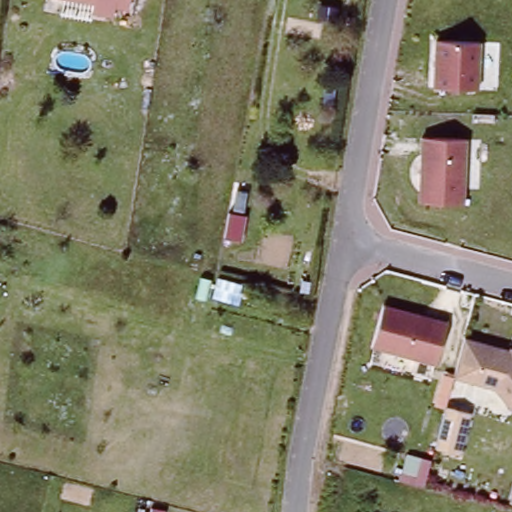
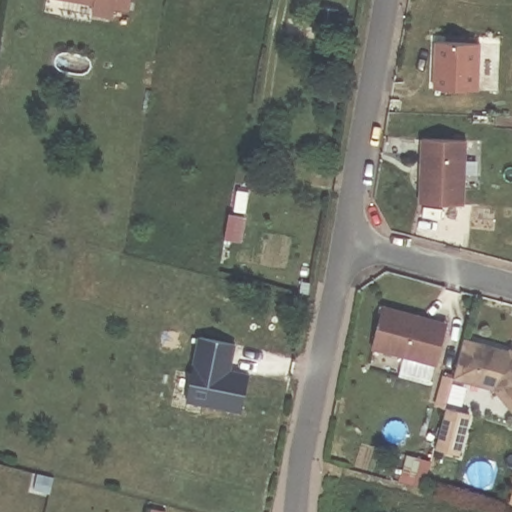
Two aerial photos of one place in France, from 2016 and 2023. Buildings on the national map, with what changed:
unchanged [(115,6),(113,16),(92,11),(94,2),(82,0),(131,0),(129,8),(115,6)]
unchanged [(438,43),(483,45),(481,91),(437,90),(438,43)]
unchanged [(420,204),(422,139),(451,141),(465,141),(463,206),(420,204)]
unchanged [(233,216),(250,219),(245,246),(228,243),(233,216)]
unchanged [(372,348),(383,307),(418,316),(447,324),(446,330),(436,366),(372,348)]
unchanged [(494,385),(453,375),(464,334),(465,334),(512,347),(512,408),(494,385)]
new [(231,369),(250,372),(242,412),(185,401),(196,336),(236,343),(231,369)]

